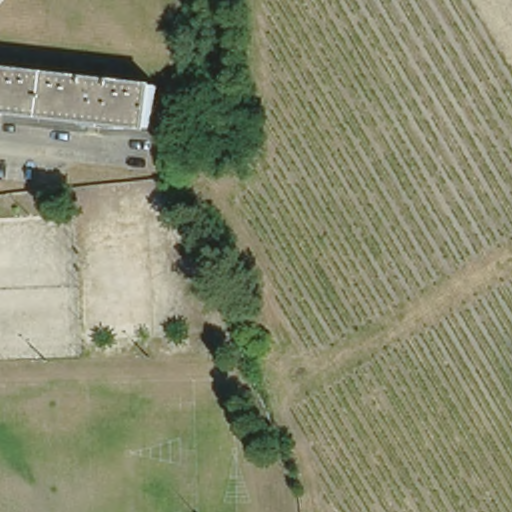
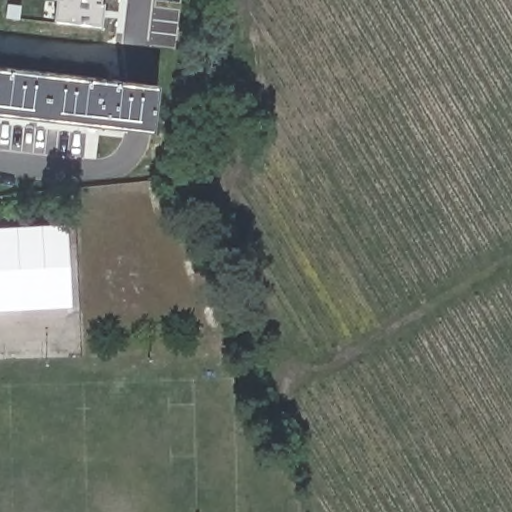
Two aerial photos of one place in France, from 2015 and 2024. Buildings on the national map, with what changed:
new [(54,20),(57,0),(104,0),(101,26),(54,20)]
unchanged [(155,90),(151,132),(0,116),(0,73),(155,90)]
new [(66,223),(70,305),(0,309),(0,227),(66,223)]

